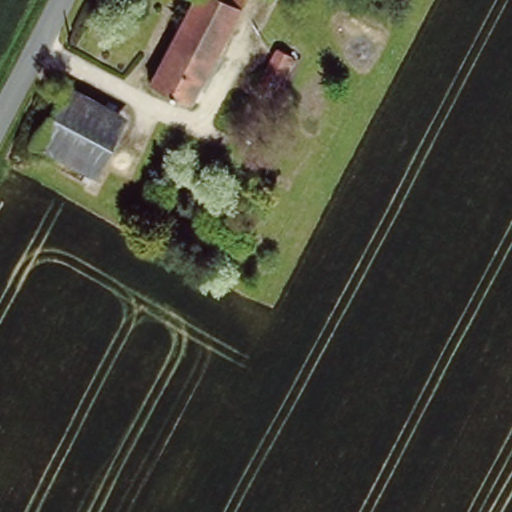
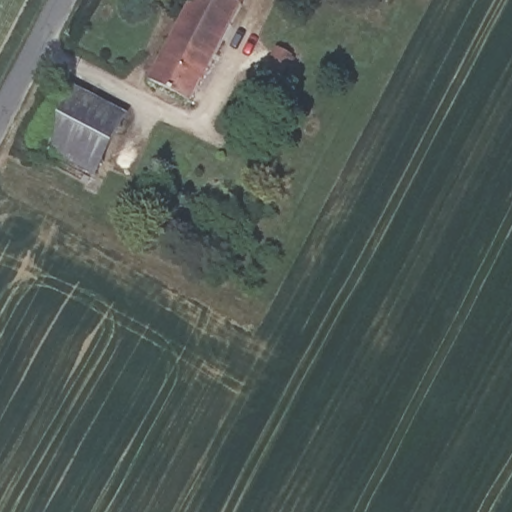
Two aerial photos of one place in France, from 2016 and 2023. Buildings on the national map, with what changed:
unchanged [(192,0),(195,0),(235,21),(184,119),(141,96),(192,0)]
unchanged [(235,21),(195,0),(246,0),(235,21)]
unchanged [(279,50),(296,58),(277,96),(260,87),(279,50)]
unchanged [(71,87),(130,117),(100,176),(40,145),(71,87)]

